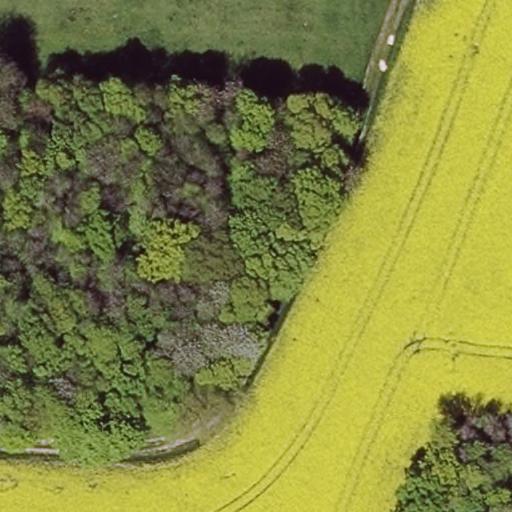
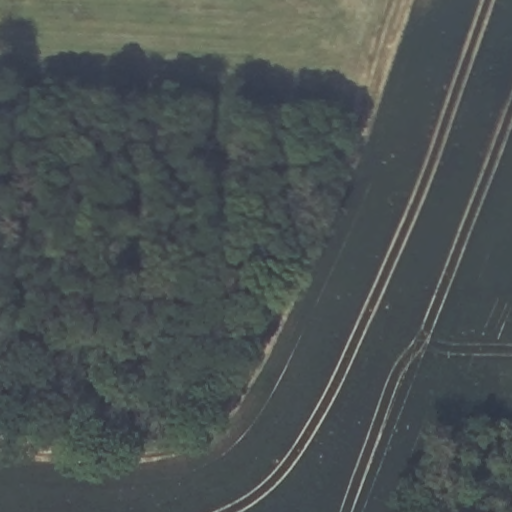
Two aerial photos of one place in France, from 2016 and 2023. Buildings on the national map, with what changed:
[]

